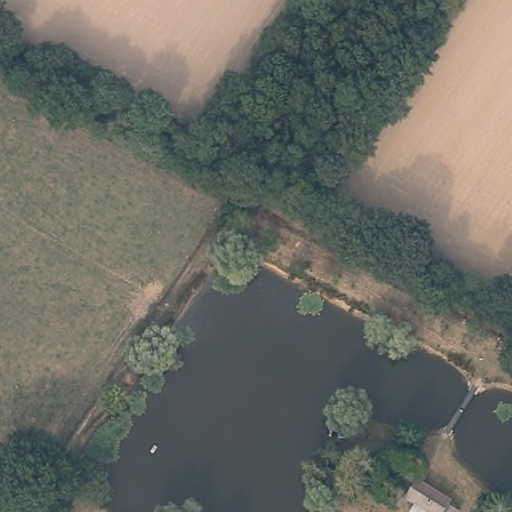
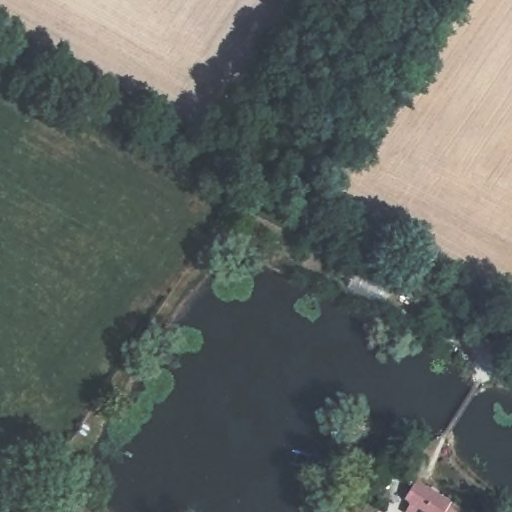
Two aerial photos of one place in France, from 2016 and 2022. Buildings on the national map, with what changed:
unchanged [(451,496),(448,500),(460,509),(458,512),(428,512),(403,495),(417,477),(451,496)]

